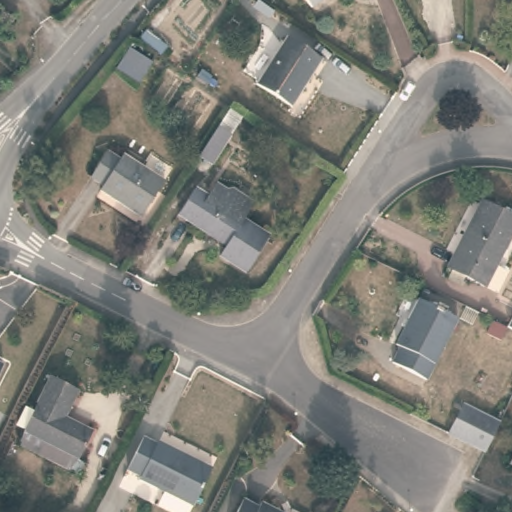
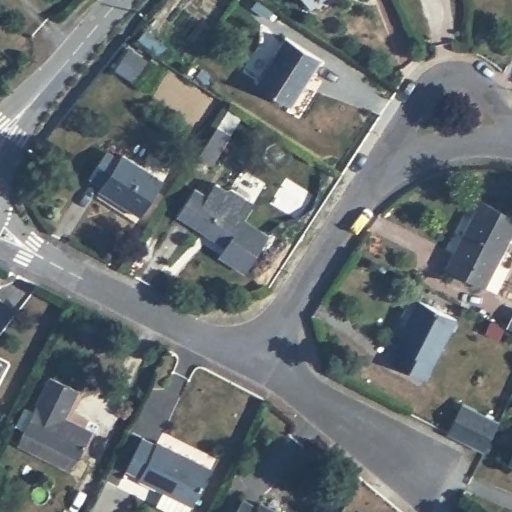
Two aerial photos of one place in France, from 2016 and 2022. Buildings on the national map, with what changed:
unchanged [(311,9),(305,0),(323,0),(311,9)]
unchanged [(160,33),(154,41),(139,29),(145,22),(160,33)]
unchanged [(312,76),(310,75),(301,87),(304,89),(292,108),(256,85),(286,38),(322,61),(312,76)]
unchanged [(138,74),(117,61),(130,39),(151,53),(138,74)]
unchanged [(199,148),(218,118),(230,100),(242,108),(230,127),(211,157),(199,148)]
unchanged [(145,218),(105,192),(108,186),(95,178),(112,152),(125,161),(128,155),(169,182),(145,218)]
unchanged [(242,221),(268,238),(245,274),(219,258),(225,247),(177,216),(194,190),(206,198),(215,184),(225,191),(227,188),(231,190),(250,202),(254,204),(251,208),(242,221)]
unchanged [(451,267),(446,265),(481,198),(512,214),(512,230),(484,284),(464,274),(460,283),(446,276),(451,267)]
unchanged [(425,383),(391,365),(399,350),(395,347),(418,302),(456,322),(425,383)]
unchanged [(512,308),(512,323),(506,320),(512,308)]
unchanged [(0,364),(0,360),(1,361),(0,364)]
unchanged [(69,473),(36,457),(16,447),(23,434),(22,433),(26,425),(18,421),(27,404),(35,408),(50,379),(76,392),(61,423),(66,425),(68,423),(90,434),(77,461),(75,460),(75,462),(83,466),(77,478),(69,473)]
unchanged [(482,450),(447,432),(461,403),(497,421),(482,450)]
unchanged [(162,485),(137,472),(139,470),(125,463),(142,430),(155,436),(156,434),(210,461),(191,500),(190,499),(183,512),(182,512),(155,499),(162,485)]
unchanged [(512,447),(512,459),(507,457),(512,447)]
unchanged [(257,501),(259,496),(290,512),(231,512),(241,493),(257,501)]

